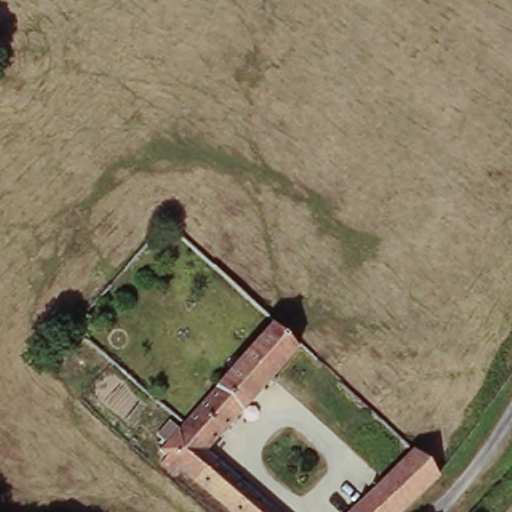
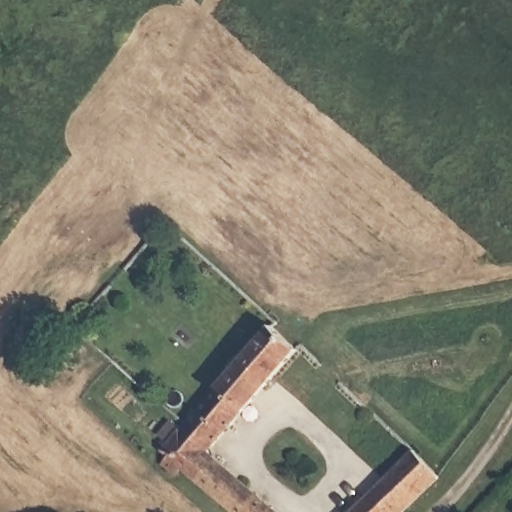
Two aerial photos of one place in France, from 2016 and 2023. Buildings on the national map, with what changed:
unchanged [(274,508),(270,512),(230,512),(162,452),(184,427),(279,322),(305,348),(212,447),(274,508)]
unchanged [(448,477),(407,512),(350,512),(420,450),(448,477)]
unchanged [(278,512),(270,512),(274,508),(278,512)]

